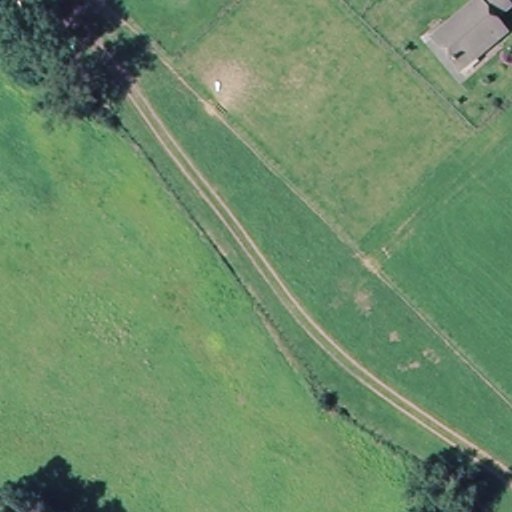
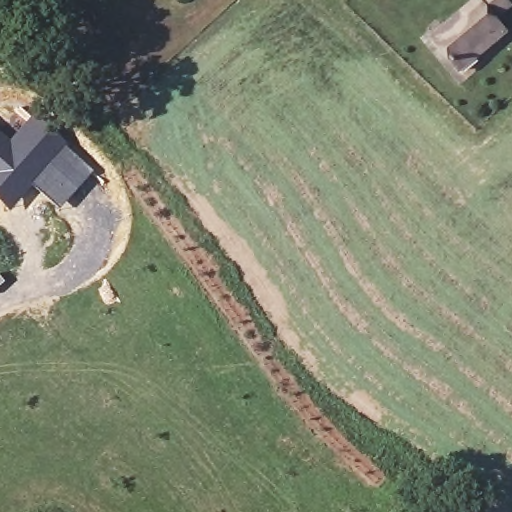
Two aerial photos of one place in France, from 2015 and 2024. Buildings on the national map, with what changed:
unchanged [(461,73),(432,37),(474,0),(510,0),(512,2),(512,8),(499,19),(510,32),(461,73)]
new [(34,113),(59,135),(94,171),(60,209),(32,186),(9,212),(0,204),(0,132),(9,139),(34,113)]

